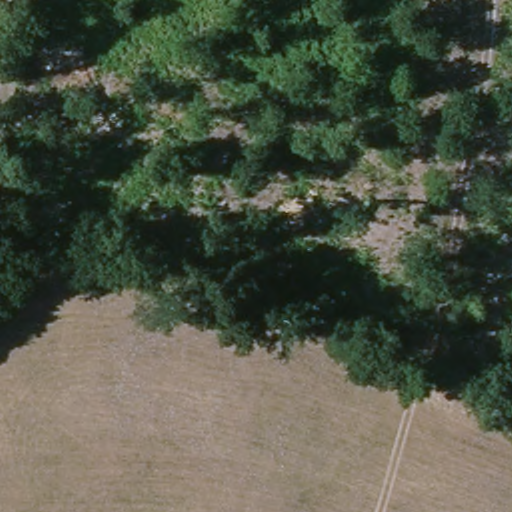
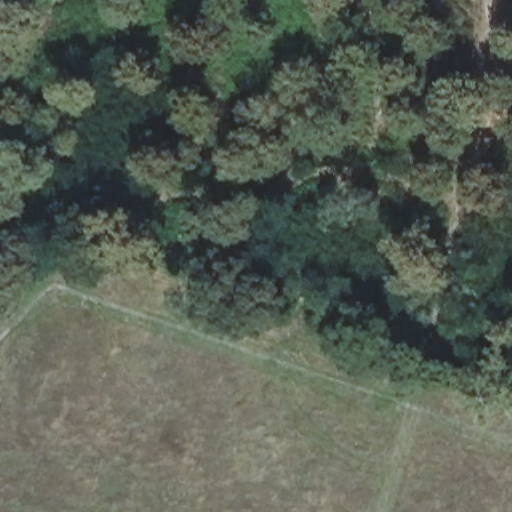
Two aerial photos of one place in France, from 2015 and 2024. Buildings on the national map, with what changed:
[]

